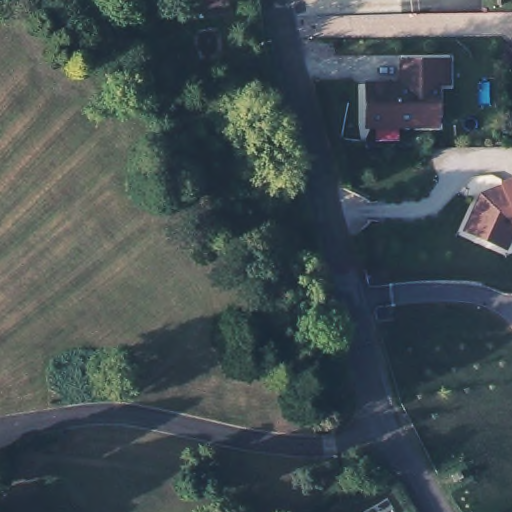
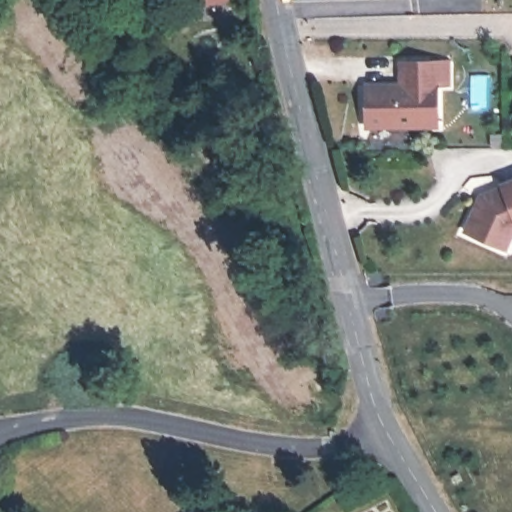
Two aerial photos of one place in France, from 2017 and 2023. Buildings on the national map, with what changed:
unchanged [(365,78),(391,78),(397,84),(401,79),(402,54),(450,54),(449,79),(438,79),(438,120),(371,119),(365,114),(365,78)]
unchanged [(468,231),(480,190),(512,175),(512,230),(505,246),(468,231)]

